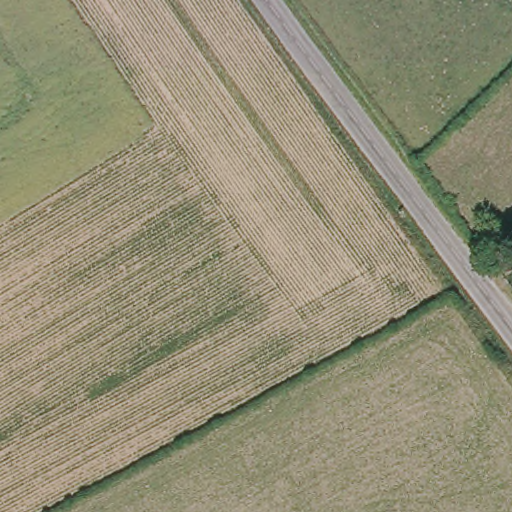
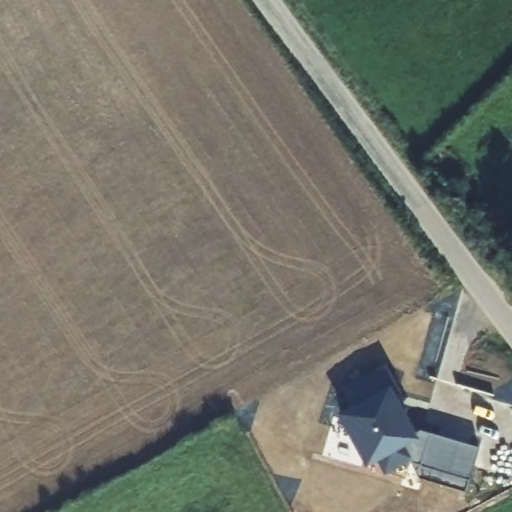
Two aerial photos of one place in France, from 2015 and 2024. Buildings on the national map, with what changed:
new [(387,472),(379,460),(368,467),(339,412),(351,406),(340,387),(385,362),(402,393),(397,396),(419,430),(479,447),(466,491),(418,476),(413,463),(387,472)]

